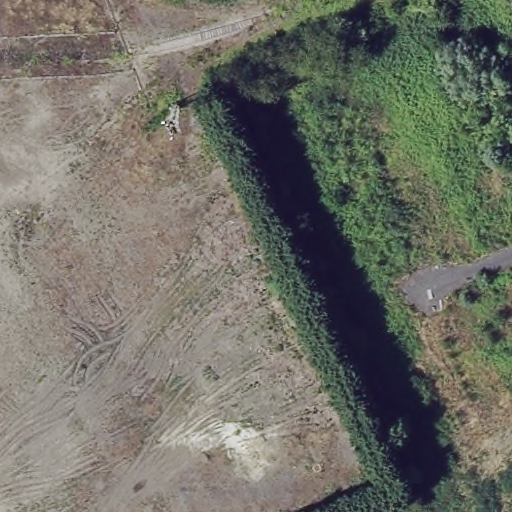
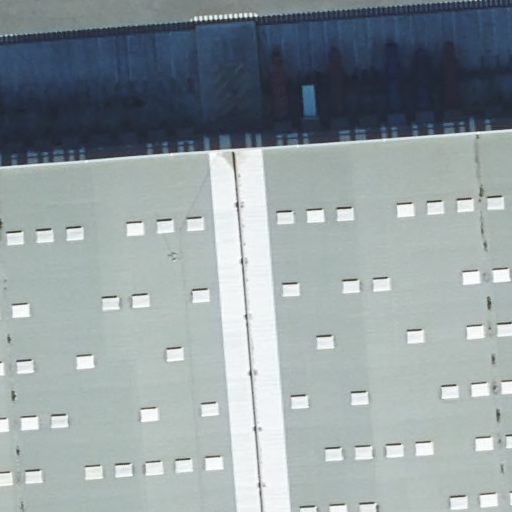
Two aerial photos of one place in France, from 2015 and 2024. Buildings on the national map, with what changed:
new [(512,122),(512,512),(0,512),(0,162),(512,122)]

